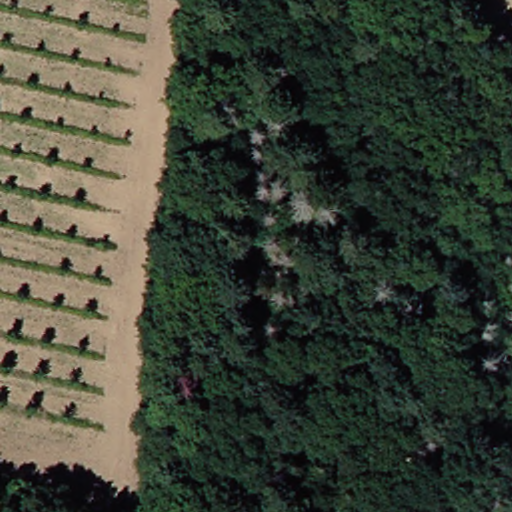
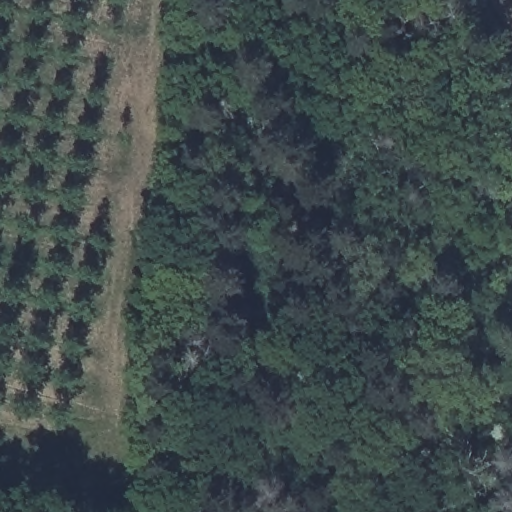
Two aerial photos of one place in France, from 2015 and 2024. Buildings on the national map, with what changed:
[]

